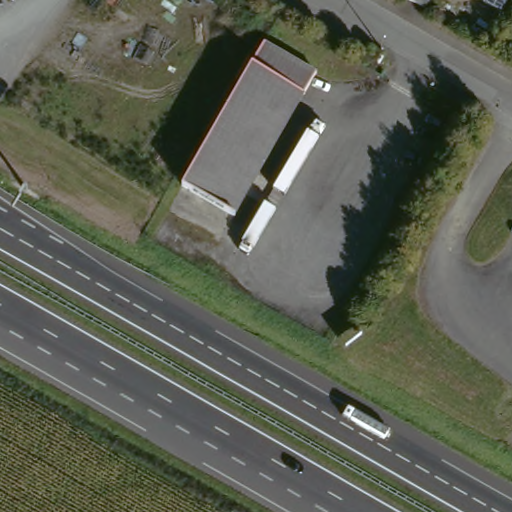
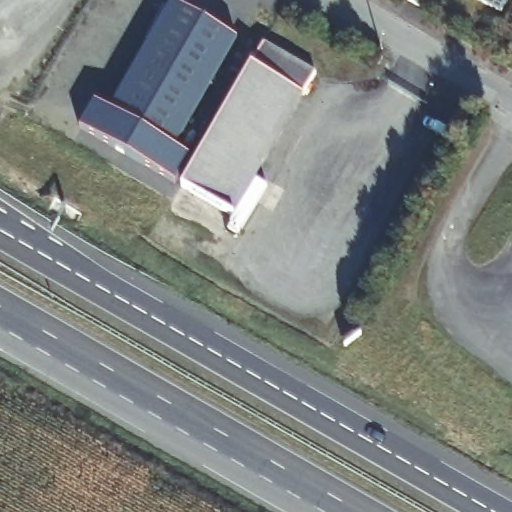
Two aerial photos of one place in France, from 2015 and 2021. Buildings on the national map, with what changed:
unchanged [(406,0),(430,0),(425,11),(405,0),(406,0)]
unchanged [(502,14),(476,0),(510,0),(502,14)]
new [(96,105),(111,114),(174,6),(239,44),(176,151),(191,160),(176,187),(81,132),(96,105)]
unchanged [(179,188),(211,131),(261,46),(314,77),(231,219),(179,188)]

